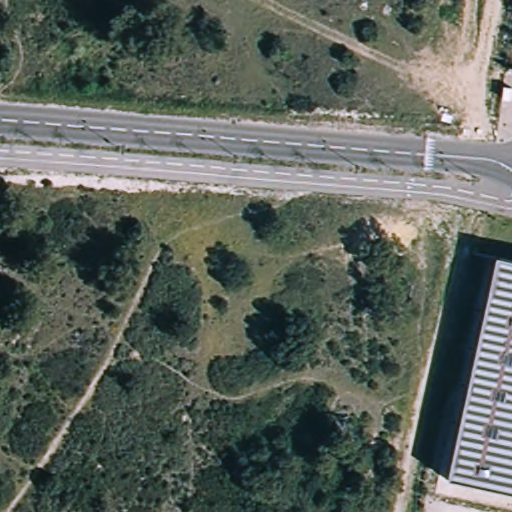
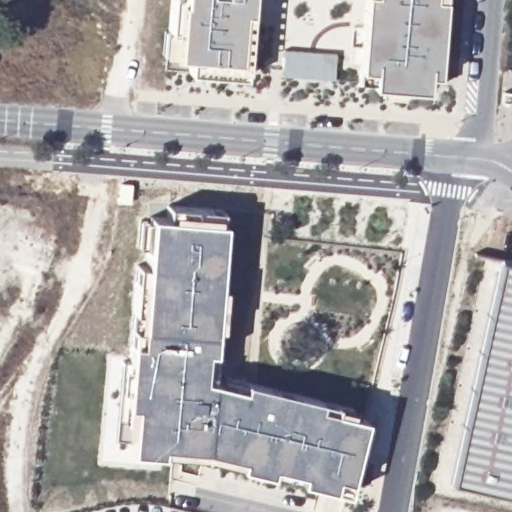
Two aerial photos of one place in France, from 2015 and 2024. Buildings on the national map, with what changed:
new [(246,70),(245,77),(189,73),(190,60),(171,57),(171,55),(164,55),(165,31),(169,31),(171,0),(251,0),(250,12),(246,70)]
new [(429,77),(428,92),(402,90),(402,96),(381,94),(382,88),(373,87),(373,82),(360,82),(360,70),(366,0),(445,0),(438,78),(429,77)]
new [(284,50),(336,55),(334,81),(281,76),(284,50)]
new [(333,490),(300,483),(270,475),(239,468),(204,459),(128,453),(131,421),(123,421),(129,342),(131,311),(135,262),(144,263),(148,214),(165,215),(166,202),(209,205),(221,206),(220,219),(223,219),(212,351),(210,382),(223,383),(225,376),(276,389),(290,392),(320,400),(353,407),(352,415),(366,418),(351,481),(348,494),(333,490)]
unchanged [(450,485),(499,260),(512,262),(512,498),(450,485)]

